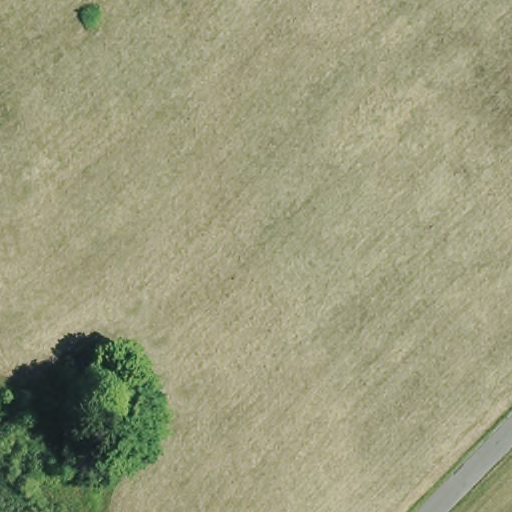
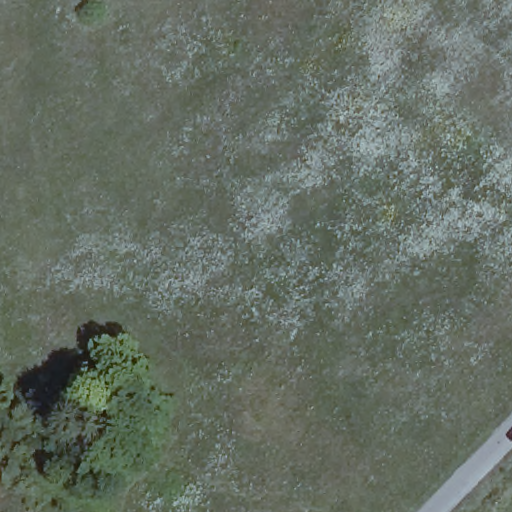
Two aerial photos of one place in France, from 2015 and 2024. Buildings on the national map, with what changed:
unchanged [(102,366),(87,383),(68,366),(86,350),(102,366)]

